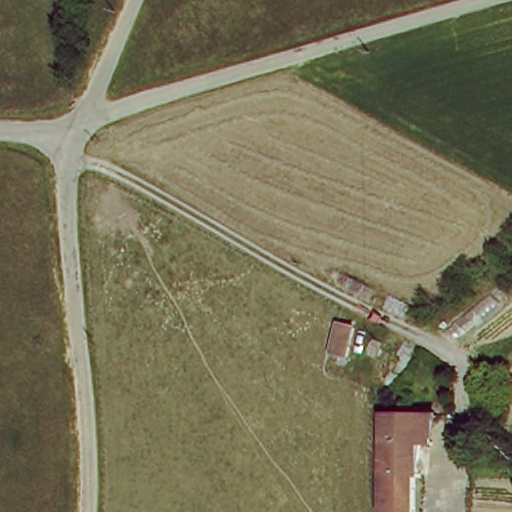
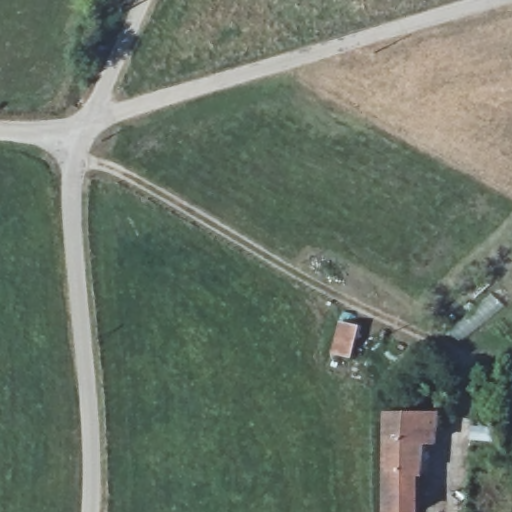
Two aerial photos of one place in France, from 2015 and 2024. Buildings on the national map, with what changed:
unchanged [(332,356),(338,321),(360,326),(351,358),(332,356)]
unchanged [(411,476),(410,512),(381,512),(382,416),(437,416),(435,476),(411,476)]

